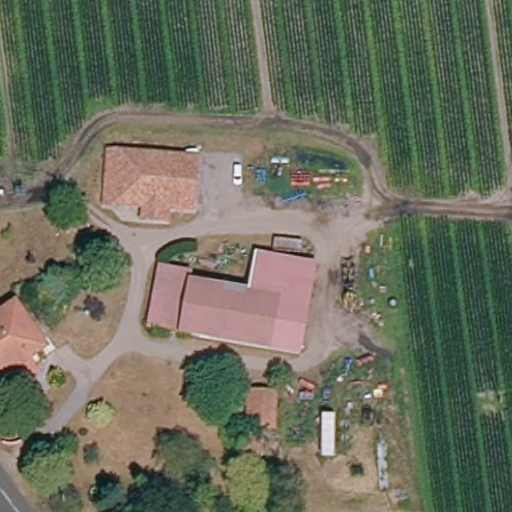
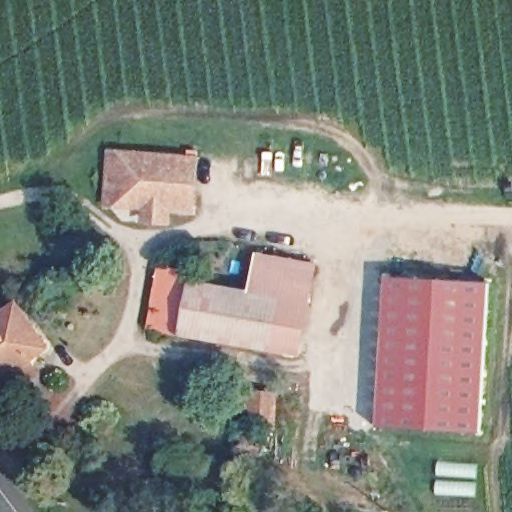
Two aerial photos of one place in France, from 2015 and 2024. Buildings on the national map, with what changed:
unchanged [(202,207),(185,206),(121,204),(121,189),(124,155),(187,159),(202,160),(202,207)]
unchanged [(255,252),(318,262),(300,357),(278,353),(287,295),(247,288),(255,252)]
new [(378,356),(380,274),(426,278),(490,282),(480,434),(373,427),(378,356)]
unchanged [(287,295),(278,353),(151,332),(161,275),(222,285),(287,295)]
unchanged [(52,352),(0,390),(0,321),(19,307),(52,352)]
unchanged [(248,437),(253,398),(277,401),(272,438),(248,437)]
demolished [(245,465),(245,445),(277,442),(278,463),(245,465)]

